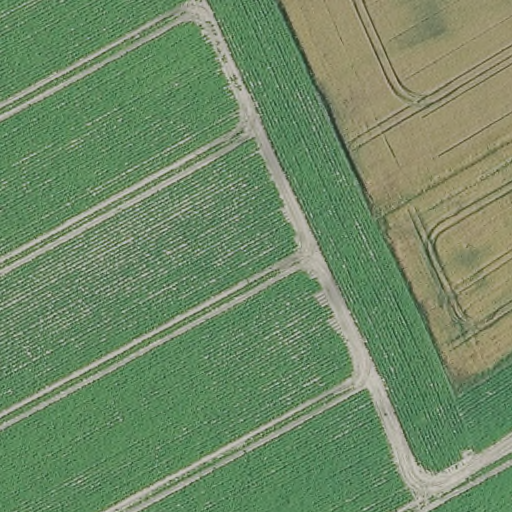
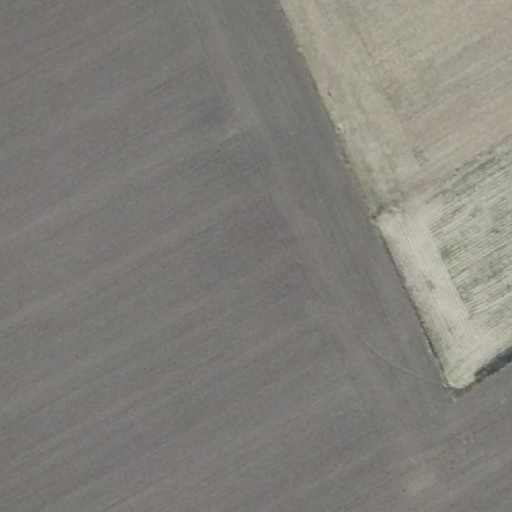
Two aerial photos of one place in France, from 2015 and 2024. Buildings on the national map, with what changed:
[]

